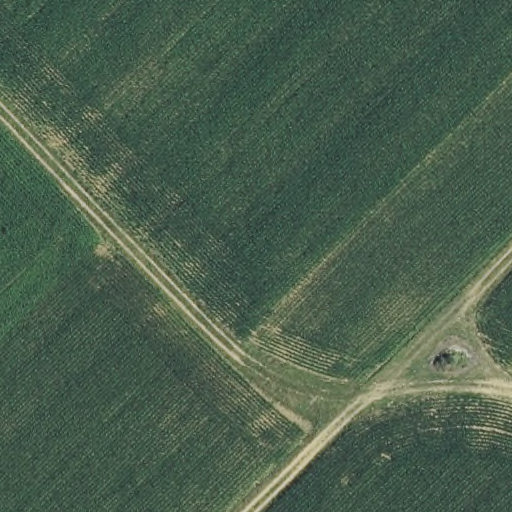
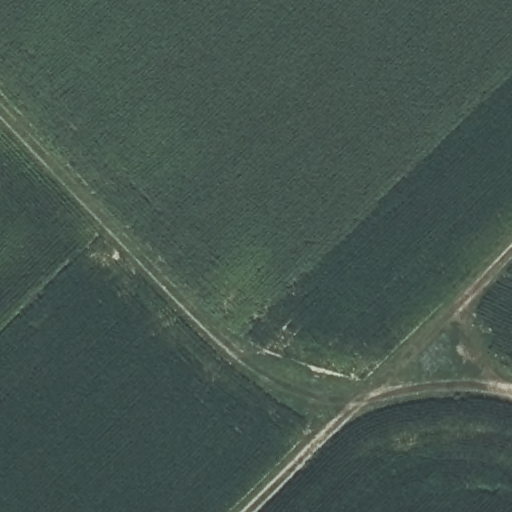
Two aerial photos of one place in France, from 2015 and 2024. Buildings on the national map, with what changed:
unchanged [(433,365),(432,350),(454,348),(455,362),(433,365)]

